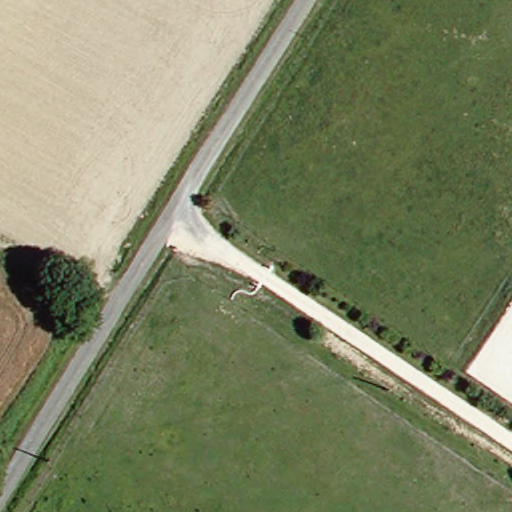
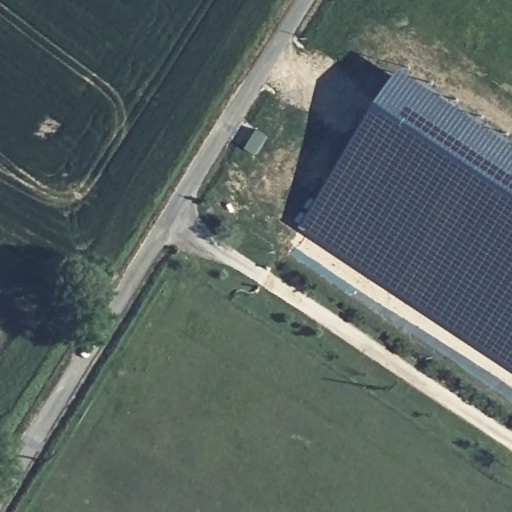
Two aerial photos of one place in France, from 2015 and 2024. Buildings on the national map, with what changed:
new [(302,226),(411,66),(512,133),(512,364),(302,226)]

